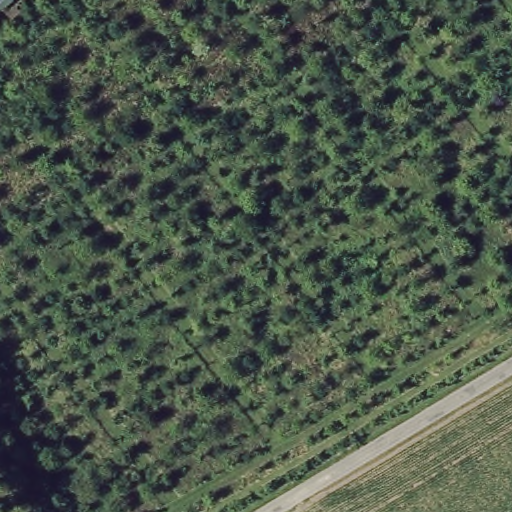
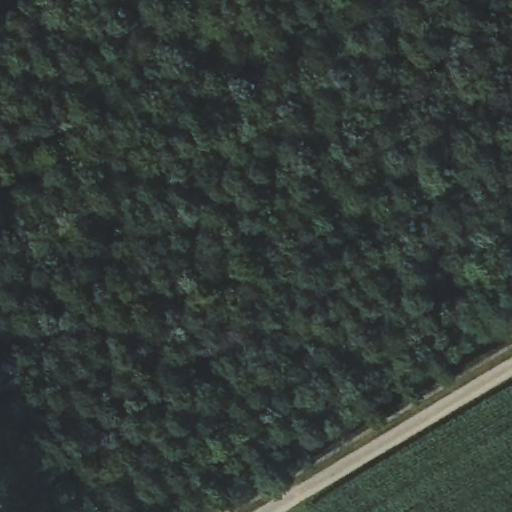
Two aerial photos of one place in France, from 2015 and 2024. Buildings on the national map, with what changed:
unchanged [(0,0),(12,0),(0,9),(0,0)]

